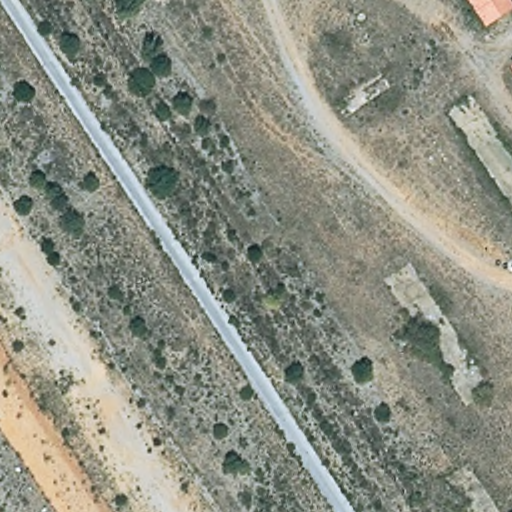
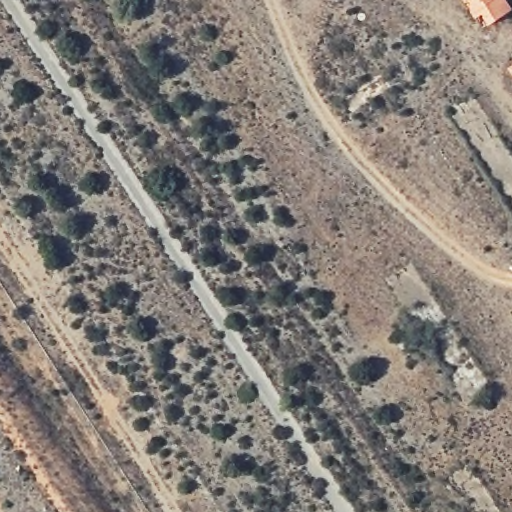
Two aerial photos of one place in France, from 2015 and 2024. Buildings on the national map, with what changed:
unchanged [(512,0),(512,3),(482,23),(467,0),(512,0)]
unchanged [(512,70),(508,63),(512,61),(512,70)]

